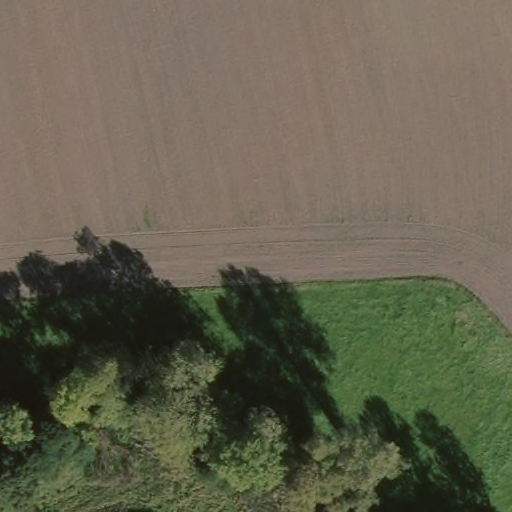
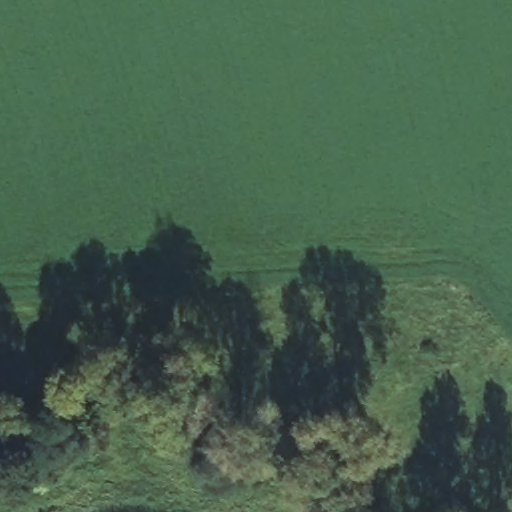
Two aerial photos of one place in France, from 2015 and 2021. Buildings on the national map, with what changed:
[]

